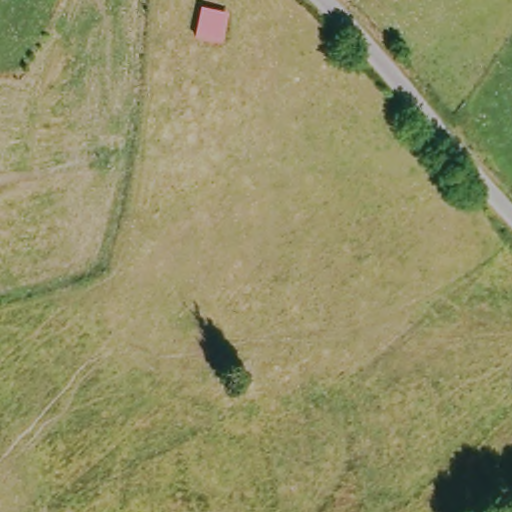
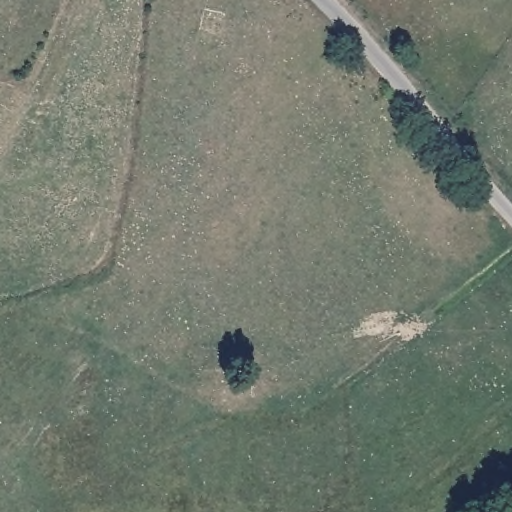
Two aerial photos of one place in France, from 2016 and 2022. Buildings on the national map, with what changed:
[]

